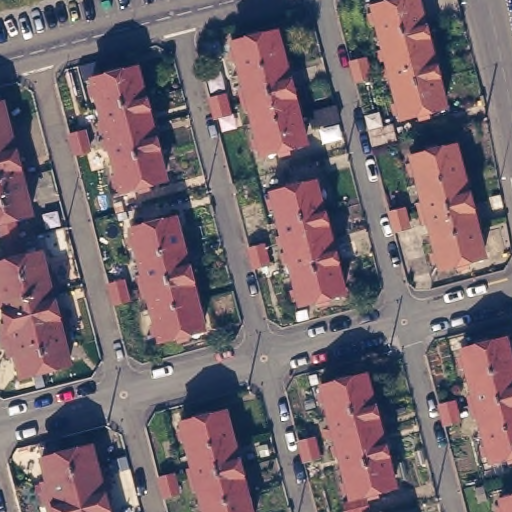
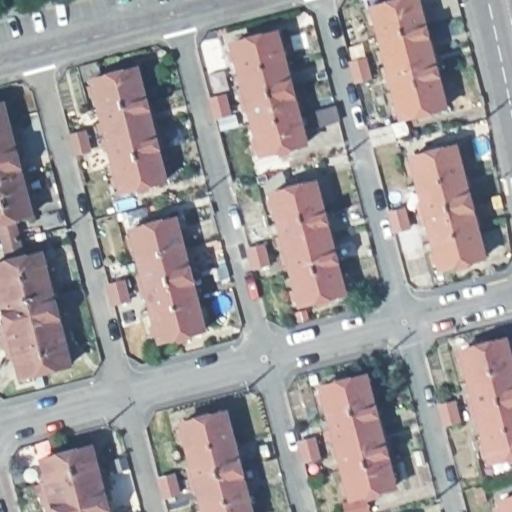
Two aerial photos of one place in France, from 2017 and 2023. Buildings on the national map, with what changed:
unchanged [(376,2),(385,0),(424,0),(450,104),(406,114),(376,2)]
unchanged [(261,150),(232,39),(276,27),(306,140),(261,150)]
unchanged [(351,63),(366,59),(371,79),(356,82),(351,63)]
unchanged [(121,192),(93,80),(136,68),(164,181),(121,192)]
unchanged [(211,99),(225,95),(230,115),(216,118),(211,99)]
unchanged [(53,269),(58,286),(51,288),(55,306),(63,305),(70,337),(64,338),(70,361),(21,372),(15,350),(8,352),(0,320),(7,318),(2,300),(0,300),(0,259),(8,257),(3,237),(0,224),(0,99),(3,98),(8,121),(14,120),(23,151),(16,154),(21,172),(28,170),(32,187),(25,189),(31,211),(13,215),(18,234),(23,253),(41,249),(46,271),(53,269)]
unchanged [(313,129),(309,114),(336,106),(340,121),(313,129)]
unchanged [(369,132),(392,127),(396,141),(373,147),(369,132)]
unchanged [(70,135),(84,131),(90,151),(75,154),(70,135)]
unchanged [(455,146),(484,258),(440,269),(411,157),(455,146)]
unchanged [(301,301),(271,189),(315,177),(344,290),(301,301)]
unchanged [(404,207),(409,227),(394,232),(389,212),(404,207)]
unchanged [(166,338),(136,226),(180,214),(209,326),(166,338)]
unchanged [(74,245),(51,252),(48,239),(70,232),(74,245)]
unchanged [(249,249),(264,245),(268,265),(253,269),(249,249)]
unchanged [(124,281),(128,301),(114,304),(109,285),(124,281)]
unchanged [(466,346),(510,334),(512,342),(512,453),(496,457),(466,346)]
unchanged [(366,371),(394,482),(351,493),(321,382),(366,371)]
unchanged [(440,405),(454,402),(460,427),(445,425),(440,405)]
unchanged [(225,407),(252,512),(205,512),(181,418),(225,407)]
unchanged [(300,442),(314,438),(319,457),(304,461),(300,442)]
unchanged [(60,508),(54,510),(46,477),(53,476),(47,454),(95,442),(101,465),(108,462),(116,494),(110,497),(113,512),(62,512),(60,508)]
unchanged [(159,478),(174,474),(179,496),(164,497),(159,478)]
unchanged [(512,497),(512,512),(503,512),(500,500),(512,497)]

